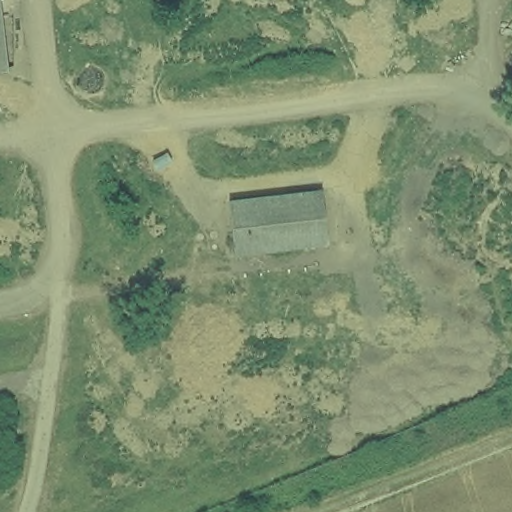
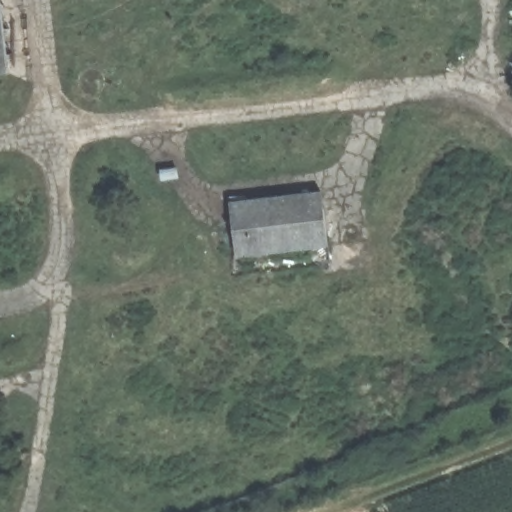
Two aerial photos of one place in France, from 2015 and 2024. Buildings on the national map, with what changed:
unchanged [(5,0),(12,74),(0,76),(0,0),(5,0)]
unchanged [(328,249),(237,257),(229,199),(320,191),(328,249)]

